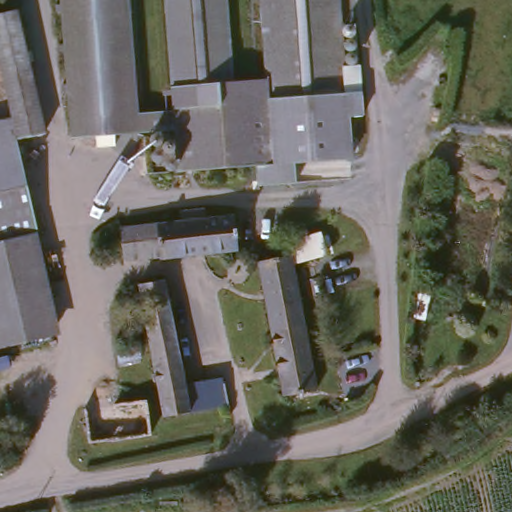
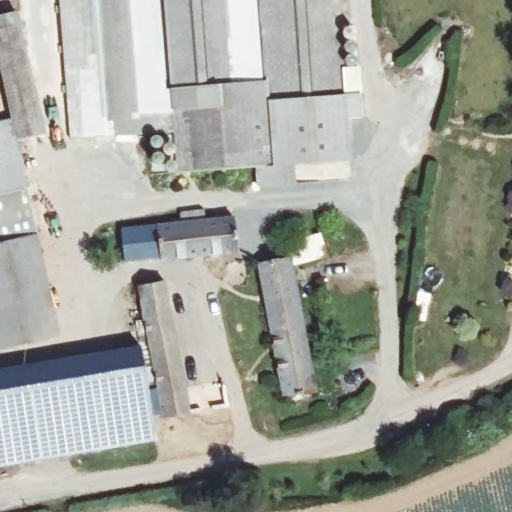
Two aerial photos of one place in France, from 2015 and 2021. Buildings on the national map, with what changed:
unchanged [(259,74),(257,0),(339,0),(342,96),(357,96),(357,120),(342,120),(343,163),(272,165),(272,186),(250,186),(249,166),(169,168),(168,125),(68,127),(62,0),(131,0),(136,105),(168,104),(164,0),(225,0),(227,75),(259,74)]
unchanged [(49,128),(23,134),(0,25),(0,12),(24,7),(49,128)]
unchanged [(40,230),(32,232),(55,331),(0,344),(0,131),(16,127),(40,230)]
unchanged [(214,217),(238,215),(242,246),(166,255),(166,252),(129,257),(125,227),(186,220),(185,210),(213,207),(214,217)]
unchanged [(320,386),(286,392),(263,260),(296,254),(320,386)]
unchanged [(164,267),(184,372),(196,370),(199,381),(225,376),(228,392),(162,404),(138,272),(164,267)]
new [(0,466),(0,367),(139,344),(155,440),(0,466)]
demolished [(151,402),(155,436),(94,444),(89,410),(151,402)]

